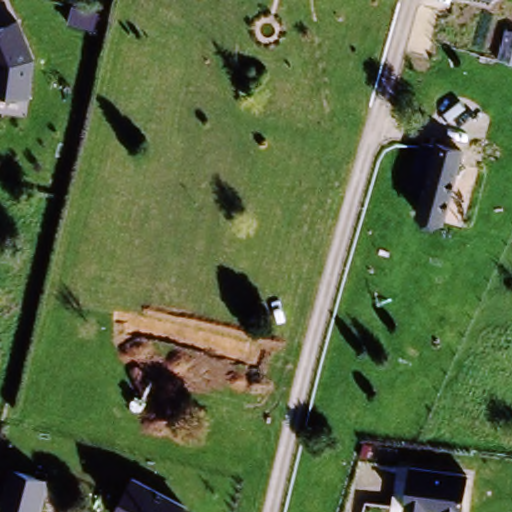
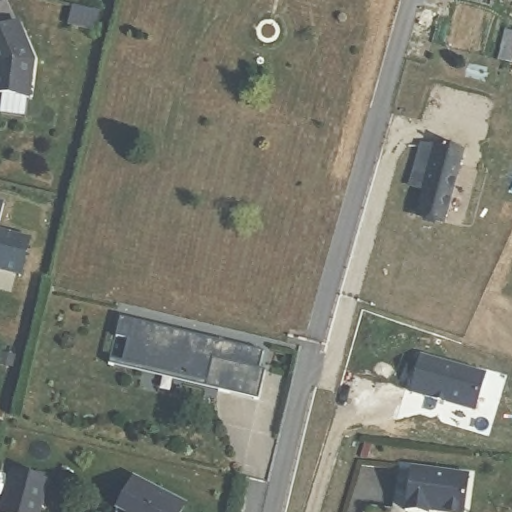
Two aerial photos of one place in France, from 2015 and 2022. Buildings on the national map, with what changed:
new [(485,0),(495,0),(494,2),(485,0)]
unchanged [(18,23),(35,62),(26,101),(0,96),(0,30),(18,23)]
unchanged [(431,142),(442,145),(442,142),(465,150),(445,219),(420,212),(430,179),(421,176),(431,142)]
new [(5,201),(0,222),(0,200),(5,201)]
new [(29,240),(30,237),(31,237),(21,276),(20,276),(20,275),(0,269),(0,232),(29,240)]
new [(120,312),(265,347),(260,365),(266,366),(259,396),(218,386),(222,373),(210,370),(207,379),(122,358),(128,335),(115,332),(120,312)]
new [(486,372),(475,411),(408,391),(420,353),(486,372)]
unchanged [(466,475),(463,512),(403,512),(408,468),(466,475)]
unchanged [(8,470),(45,478),(37,512),(0,512),(0,503),(8,470)]
unchanged [(183,512),(117,512),(113,510),(131,477),(186,505),(183,512)]

